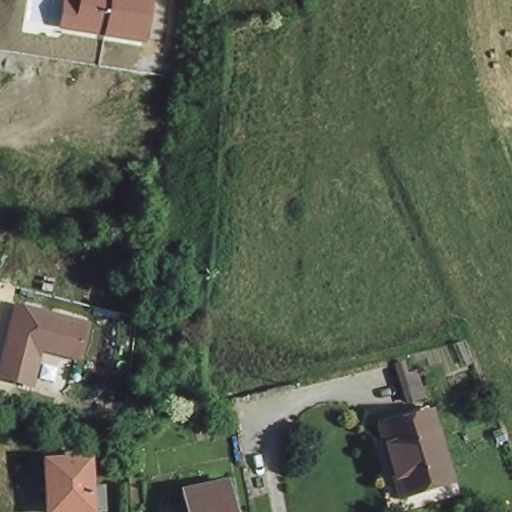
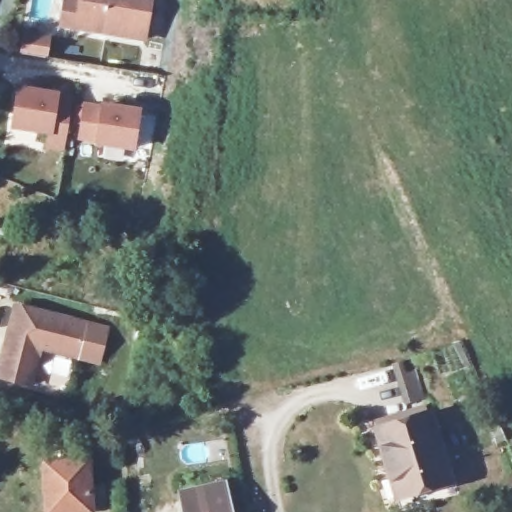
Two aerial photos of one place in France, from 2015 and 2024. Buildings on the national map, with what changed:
unchanged [(147,41),(58,27),(63,0),(155,0),(147,41)]
new [(50,32),(46,60),(14,55),(17,29),(50,32)]
new [(10,131),(17,85),(57,90),(57,97),(71,99),(62,152),(45,151),(47,136),(10,131)]
new [(77,140),(82,102),(100,105),(100,103),(140,107),(135,151),(95,146),(77,140)]
unchanged [(42,351),(33,388),(0,380),(0,356),(12,303),(92,322),(81,362),(42,351)]
unchanged [(452,478),(401,495),(392,470),(377,425),(390,421),(428,408),(452,478)]
unchanged [(78,486),(97,488),(96,512),(41,512),(44,462),(79,465),(78,486)]
unchanged [(179,512),(177,495),(223,486),(227,512),(179,512)]

